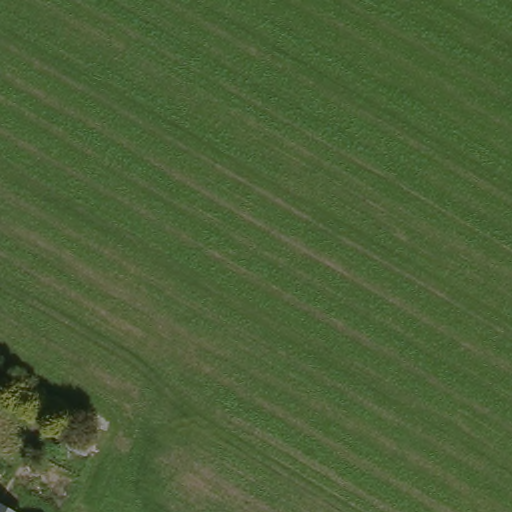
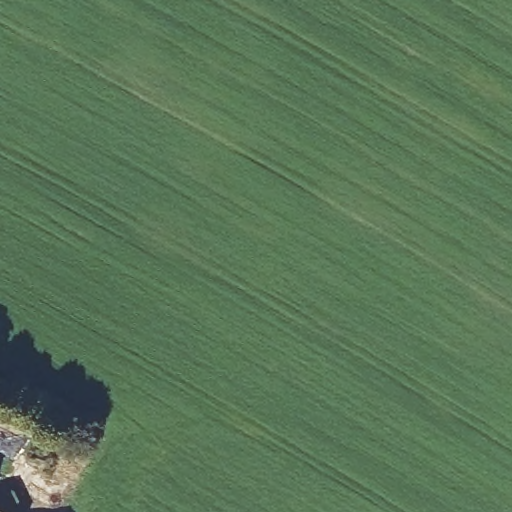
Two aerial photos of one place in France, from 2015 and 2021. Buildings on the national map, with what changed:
unchanged [(0,507),(8,512),(0,512),(0,507)]

